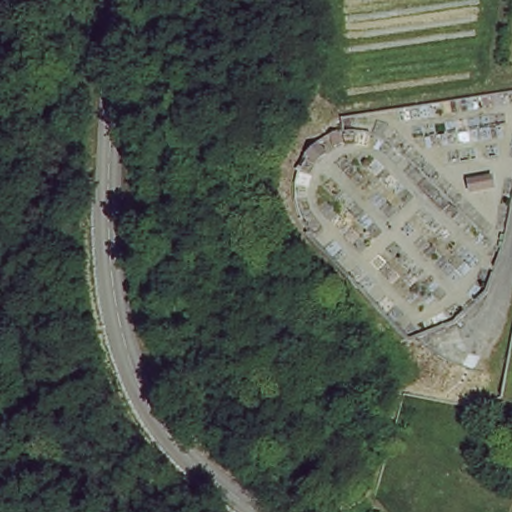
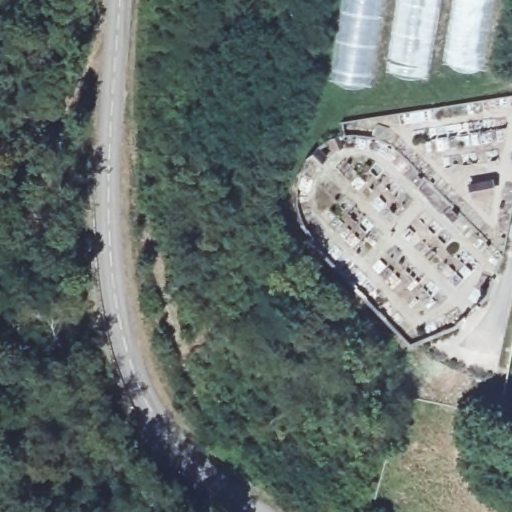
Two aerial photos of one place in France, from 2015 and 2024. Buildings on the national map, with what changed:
new [(370,86),(329,79),(341,0),(384,0),(370,86)]
new [(426,77),(384,70),(395,0),(439,0),(426,77)]
new [(484,70),(440,64),(452,0),(495,0),(484,70)]

